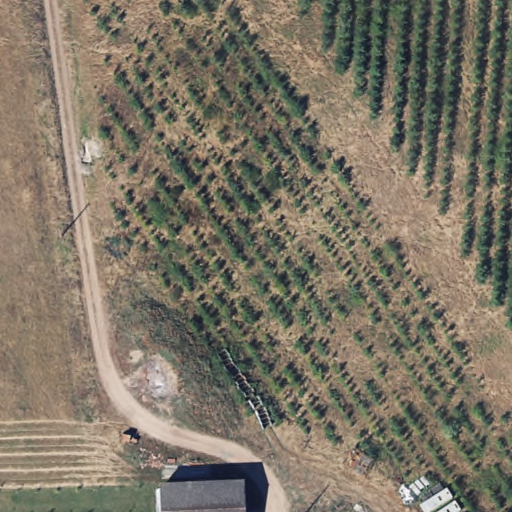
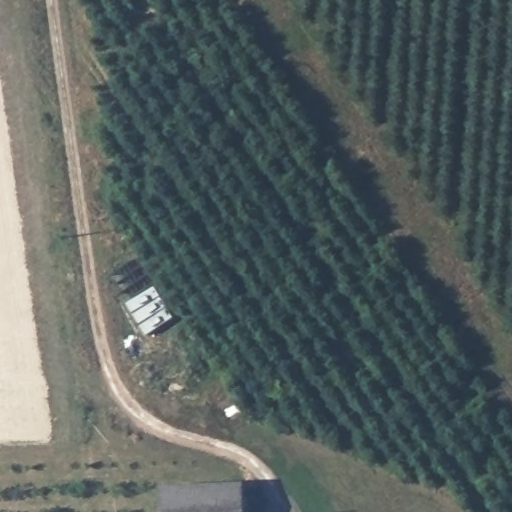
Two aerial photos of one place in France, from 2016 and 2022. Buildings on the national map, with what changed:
unchanged [(242,512),(163,512),(162,485),(241,482),(242,512)]

